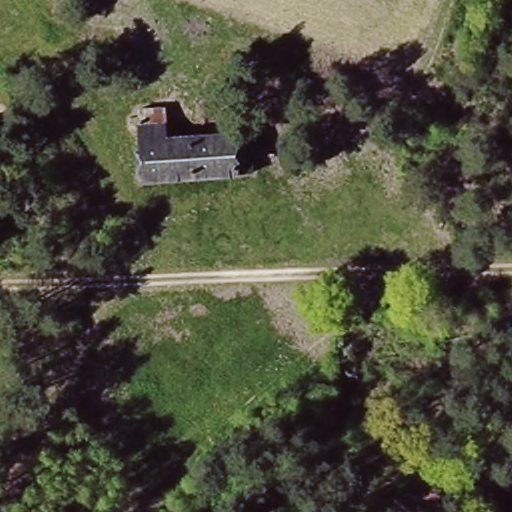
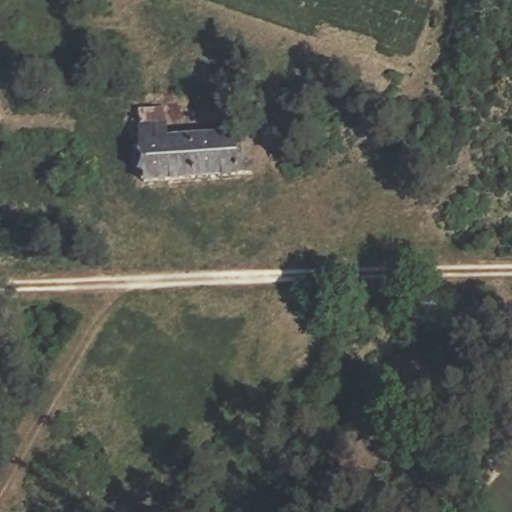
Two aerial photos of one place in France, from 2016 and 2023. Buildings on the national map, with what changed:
unchanged [(135,115),(163,114),(164,141),(252,138),(254,176),(138,181),(135,115)]
unchanged [(35,193),(34,172),(34,149),(47,149),(48,172),(49,193),(35,193)]
unchanged [(509,362),(512,362),(512,386),(506,385),(509,362)]

